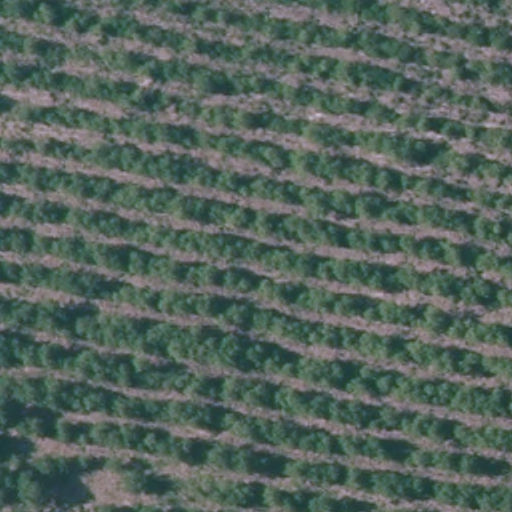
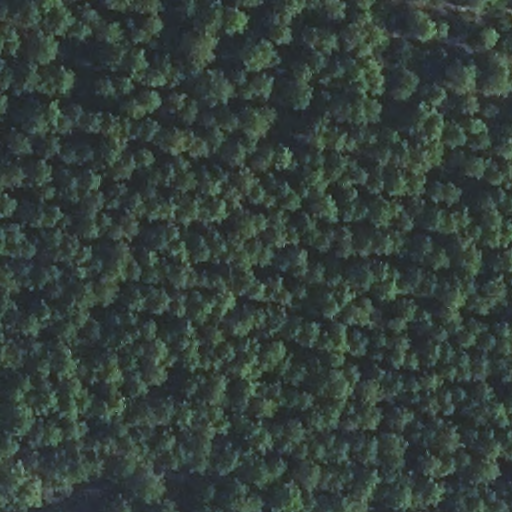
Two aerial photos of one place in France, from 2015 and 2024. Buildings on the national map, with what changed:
[]

